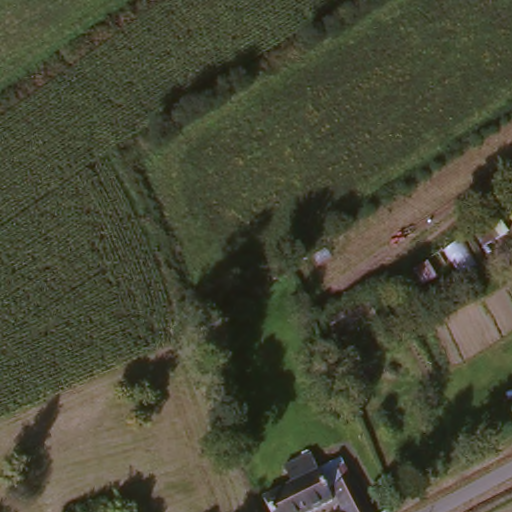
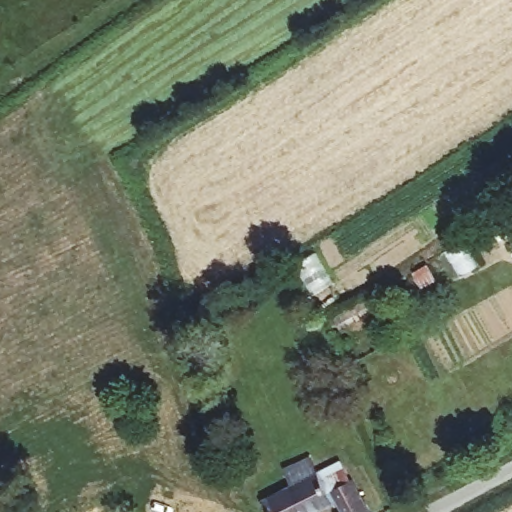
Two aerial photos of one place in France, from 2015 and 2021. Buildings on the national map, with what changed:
unchanged [(342,496),(310,512),(306,512),(294,480),(338,459),(356,462),(376,512),(348,512),(342,496)]
unchanged [(294,480),(306,512),(281,512),(272,491),(294,480)]

